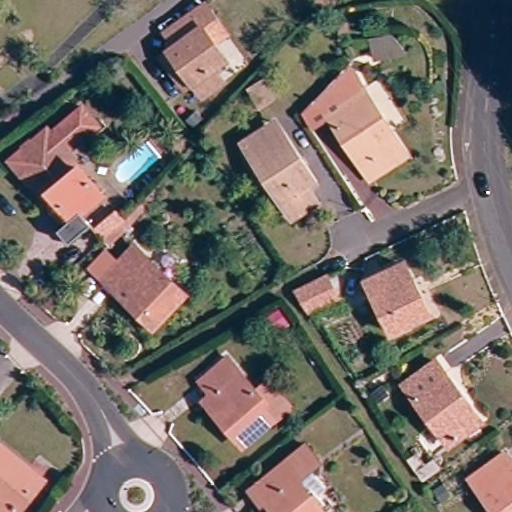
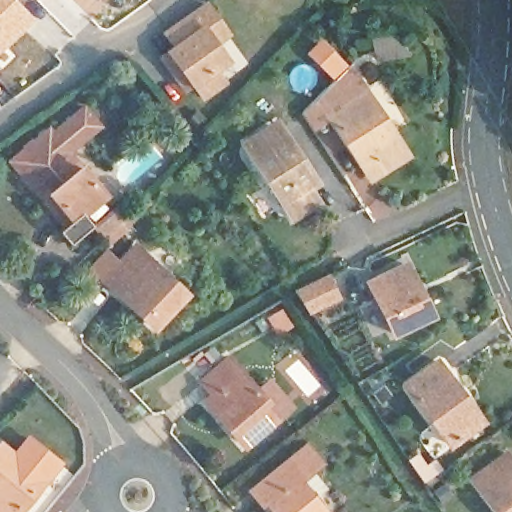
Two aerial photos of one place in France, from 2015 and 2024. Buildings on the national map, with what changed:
new [(0,0),(18,0),(36,20),(0,55),(0,0)]
unchanged [(210,105),(200,90),(190,96),(176,76),(169,65),(173,62),(177,59),(169,47),(202,22),(206,20),(214,30),(225,45),(224,46),(216,51),(230,70),(240,82),(229,90),(210,105)]
unchanged [(329,119),(309,100),(349,62),(407,155),(368,181),(329,119)]
unchanged [(2,159),(49,121),(54,125),(85,100),(105,126),(71,150),(61,135),(51,145),(15,175),(2,159)]
unchanged [(295,181),(302,195),(278,209),(240,144),(273,122),(304,174),(295,181)]
unchanged [(107,243),(92,227),(80,239),(71,246),(57,231),(63,226),(50,211),(30,190),(17,176),(51,145),(100,197),(126,225),(107,243)]
unchanged [(136,300),(130,305),(110,285),(107,282),(94,270),(110,255),(120,265),(122,267),(138,251),(185,298),(160,323),(136,300)]
unchanged [(387,330),(361,285),(395,265),(421,310),(387,330)]
unchanged [(313,312),(298,290),(329,276),(338,296),(313,312)]
unchanged [(275,420),(240,447),(200,405),(209,395),(195,380),(227,352),(254,386),(273,372),(290,405),(275,420)]
unchanged [(482,412),(442,443),(405,391),(399,383),(422,366),(440,354),(482,412)]
unchanged [(18,512),(0,512),(0,446),(1,445),(45,481),(31,496),(19,511),(18,512)]
unchanged [(317,496),(327,510),(324,512),(275,512),(265,500),(260,503),(249,488),(302,446),(316,465),(308,471),(323,491),(317,496)]
unchanged [(470,481),(509,451),(512,456),(512,512),(492,512),(470,481)]

